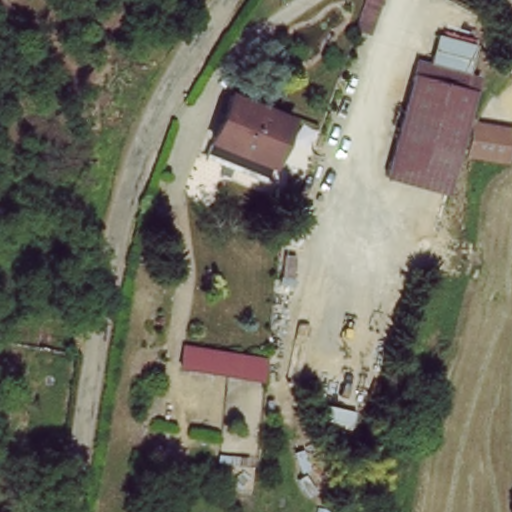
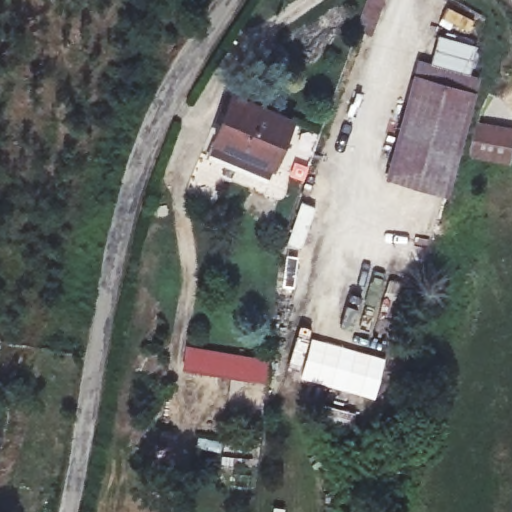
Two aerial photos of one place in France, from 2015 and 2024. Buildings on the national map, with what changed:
unchanged [(353,26),(359,11),(364,0),(381,0),(374,17),(368,32),(353,26)]
unchanged [(412,60),(472,69),(469,87),(409,77),(412,60)]
unchanged [(469,87),(453,189),(393,180),(409,77),(469,87)]
unchanged [(222,136),(242,91),(276,104),(299,113),(279,159),(278,160),(222,136)]
unchanged [(512,130),(512,139),(511,144),(506,162),(475,155),(483,121),(512,130)]
unchanged [(278,160),(272,175),(216,153),(222,136),(278,160)]
new [(311,336),(385,356),(375,397),(300,378),(311,336)]
unchanged [(185,366),(188,348),(271,363),(271,382),(185,366)]

